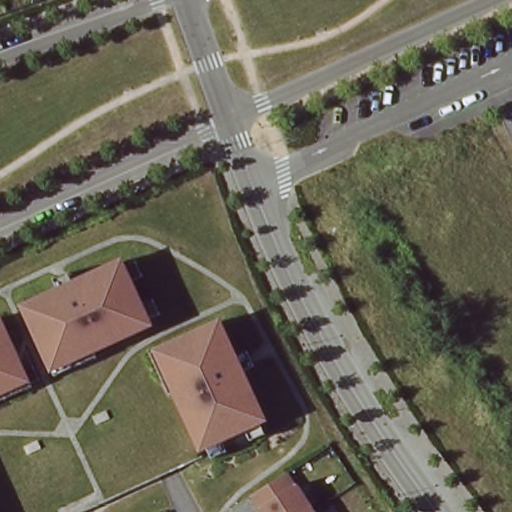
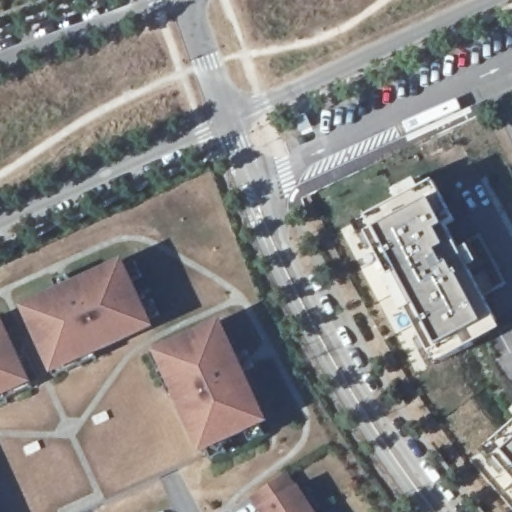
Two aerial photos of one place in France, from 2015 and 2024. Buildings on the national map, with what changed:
unchanged [(0,7),(0,0),(20,0),(0,7)]
new [(448,178),(469,216),(462,219),(512,314),(512,323),(446,359),(442,351),(432,354),(409,309),(428,299),(422,288),(404,296),(365,217),(448,178)]
unchanged [(122,262),(152,326),(93,353),(90,348),(50,367),(22,307),(122,262)]
unchanged [(0,389),(0,319),(27,377),(0,389)]
unchanged [(220,322),(266,422),(201,452),(174,393),(180,391),(161,350),(220,322)]
new [(510,457),(497,446),(512,433),(512,455),(510,457)]
unchanged [(296,486),(312,512),(311,512),(261,512),(259,509),(251,496),(257,493),(286,474),(294,487),(296,486)]

